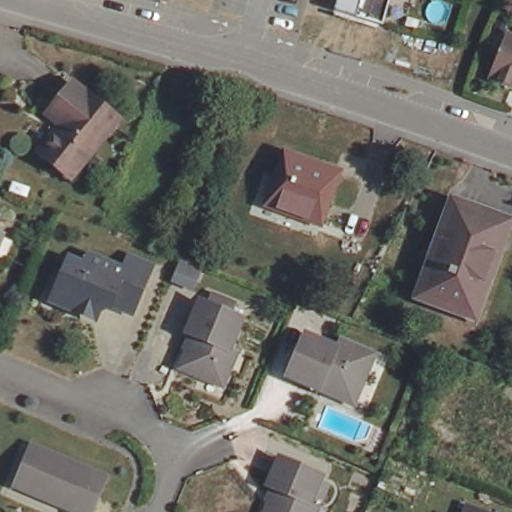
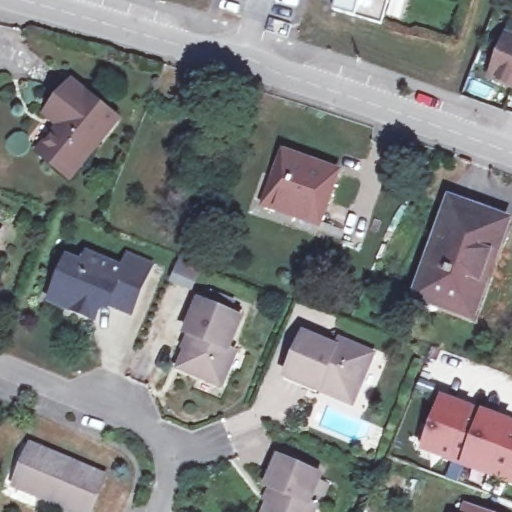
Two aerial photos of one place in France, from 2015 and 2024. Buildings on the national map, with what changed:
unchanged [(377,22),(332,9),(334,0),(384,0),(377,22)]
unchanged [(507,36),(512,38),(512,85),(491,77),(507,36)]
unchanged [(54,118),(79,91),(119,125),(72,178),(45,155),(67,129),(54,118)]
unchanged [(334,177),(319,222),(297,214),(298,210),(265,198),(277,158),(334,177)]
unchanged [(512,222),(478,321),(412,296),(450,198),(512,221),(512,222)]
unchanged [(3,237),(0,245),(0,236),(3,237)]
unchanged [(71,314),(67,304),(52,297),(66,265),(81,272),(85,262),(120,276),(126,265),(147,274),(127,317),(102,307),(97,309),(90,322),(71,314)]
unchanged [(215,299),(233,307),(229,316),(244,323),(231,353),(237,356),(223,389),(182,372),(195,340),(188,336),(202,305),(211,309),(215,299)]
unchanged [(307,338),(352,357),(354,350),(375,359),(357,400),(323,386),(320,393),(288,380),(307,338)]
demolished [(491,414),(510,425),(512,421),(512,463),(505,475),(464,451),(470,440),(440,423),(455,401),(465,383),(497,402),(491,414)]
new [(442,396),(512,422),(512,484),(420,451),(442,396)]
unchanged [(28,449),(102,481),(89,512),(64,512),(32,498),(12,489),(13,483),(28,449)]
unchanged [(267,512),(278,485),(270,481),(280,456),(322,473),(320,480),(329,483),(323,499),(313,496),(311,502),(318,505),(315,512),(267,512)]
unchanged [(471,512),(464,512),(465,510),(471,512)]

